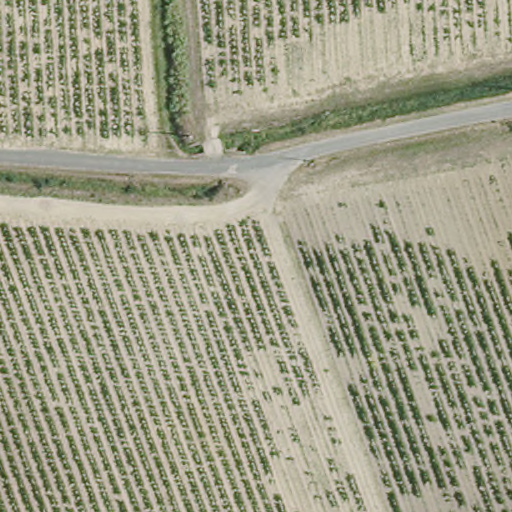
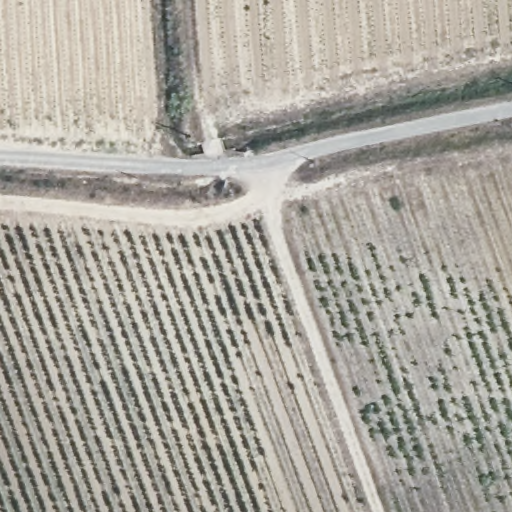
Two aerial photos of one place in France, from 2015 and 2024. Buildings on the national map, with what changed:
[]

